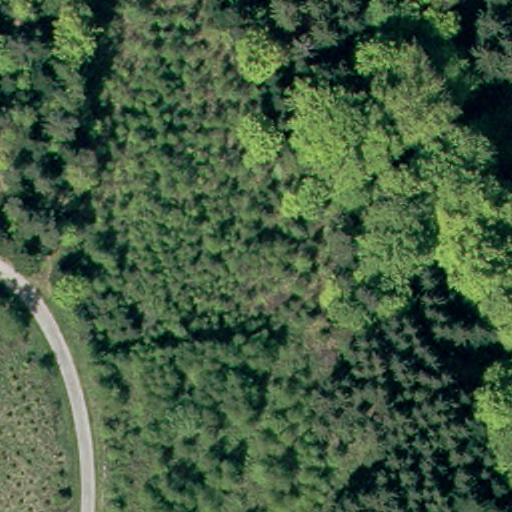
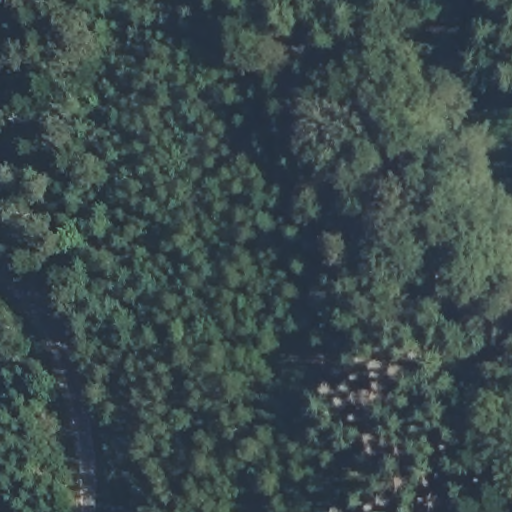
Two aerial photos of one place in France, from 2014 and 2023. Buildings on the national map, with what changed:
[]

